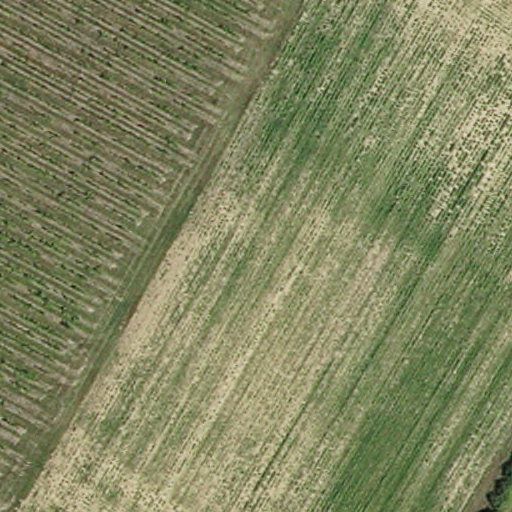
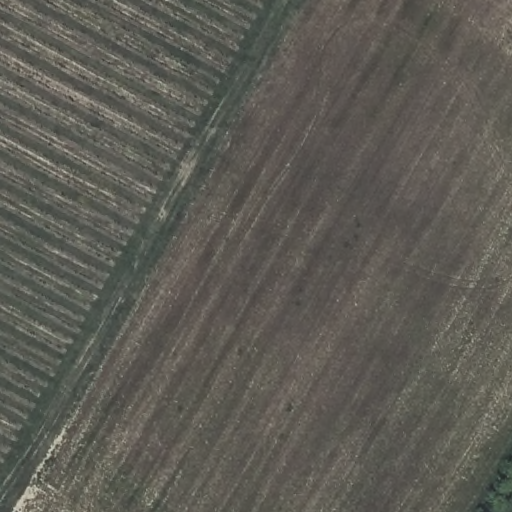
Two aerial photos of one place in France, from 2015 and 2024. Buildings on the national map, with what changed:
[]

